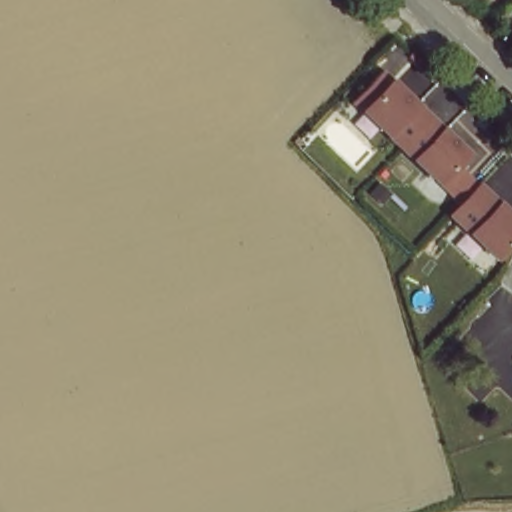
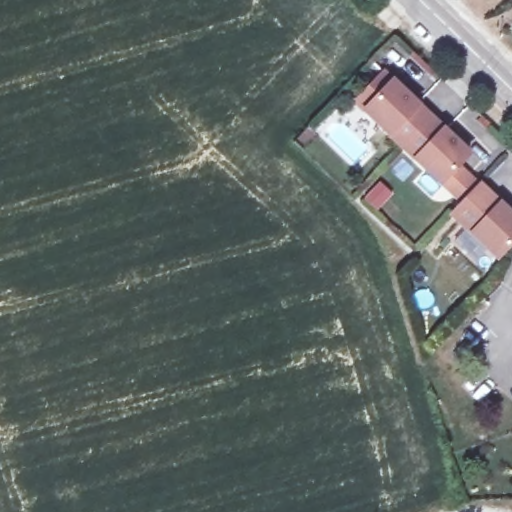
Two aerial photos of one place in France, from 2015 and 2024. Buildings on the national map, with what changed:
unchanged [(429,112),(401,142),(363,106),(356,99),(372,81),(383,70),(429,112)]
unchanged [(440,178),(401,142),(429,112),(467,149),(457,160),(479,180),(512,211),(512,236),(497,252),(451,209),(462,198),(440,178)]

